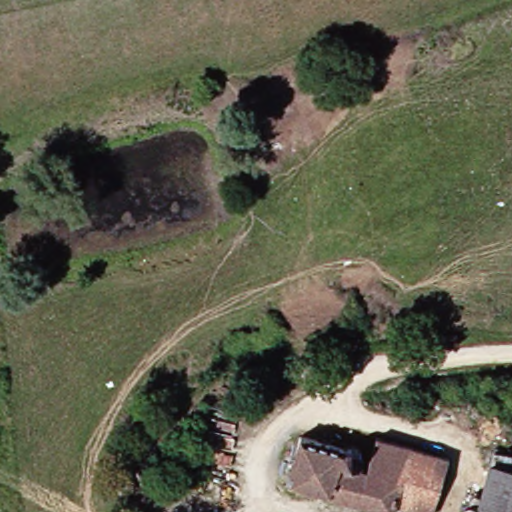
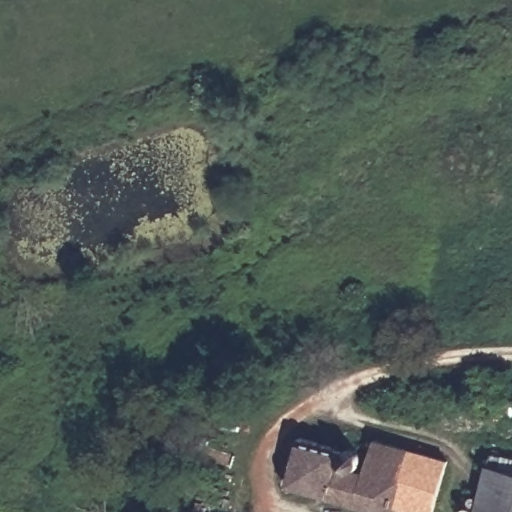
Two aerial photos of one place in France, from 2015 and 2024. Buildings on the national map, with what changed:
unchanged [(296,435),(338,445),(343,439),(350,437),(356,437),(360,438),(365,448),(361,456),(355,463),(352,465),(367,470),(377,437),(446,459),(433,512),(423,512),(392,506),(390,512),(363,512),(283,490),(296,435)]
unchanged [(473,512),(483,465),(492,468),(495,456),(512,460),(512,512),(473,512)]

